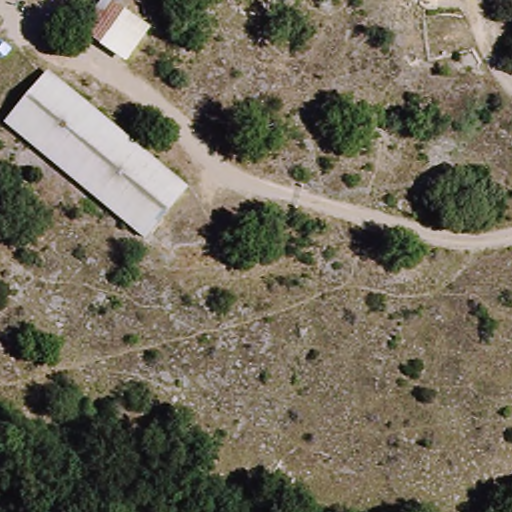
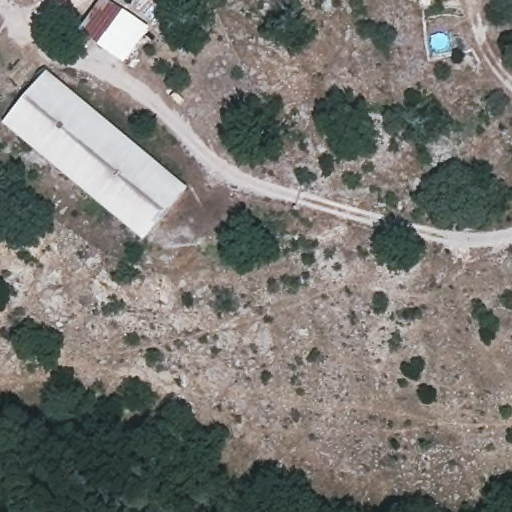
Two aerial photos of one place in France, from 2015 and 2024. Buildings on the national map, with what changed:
unchanged [(143,32),(124,57),(87,23),(102,0),(108,0),(143,32)]
unchanged [(139,241),(18,125),(66,75),(186,190),(139,241)]

